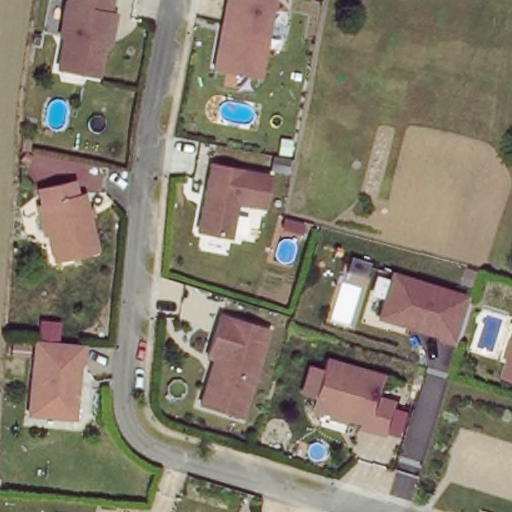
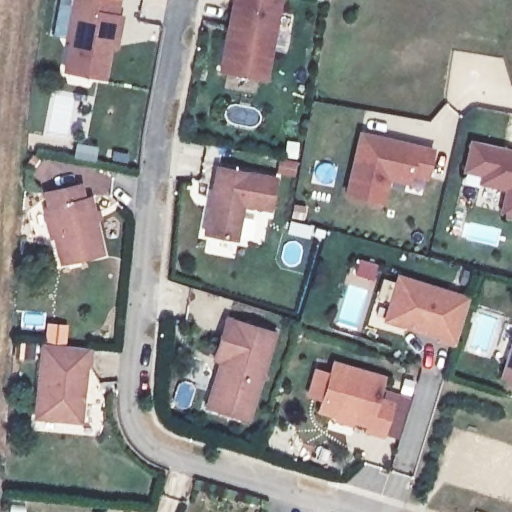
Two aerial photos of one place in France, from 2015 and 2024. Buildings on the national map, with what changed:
unchanged [(75,26),(71,25),(77,0),(121,0),(120,2),(126,4),(120,35),(114,34),(108,65),(69,58),(75,26)]
unchanged [(221,69),(226,46),(233,9),(235,0),(282,0),(266,77),(221,69)]
new [(427,179),(409,175),(409,184),(388,180),(382,204),(344,195),(359,130),(433,147),(427,179)]
new [(498,212),(504,190),(477,184),(479,175),(462,170),(469,140),(512,149),(512,216),(498,212)]
unchanged [(261,209),(246,205),(239,240),(201,235),(212,162),(266,176),(261,209)]
unchanged [(79,184),(83,199),(89,197),(101,254),(61,263),(45,191),(79,184)]
unchanged [(394,275),(465,297),(455,328),(451,343),(435,338),(435,335),(381,319),(394,275)]
unchanged [(210,388),(216,370),(223,366),(226,358),(213,353),(226,313),(274,329),(246,416),(226,410),(205,402),(210,388)]
unchanged [(499,375),(512,334),(512,380),(499,375)]
unchanged [(74,345),(95,348),(93,365),(90,365),(83,421),(38,416),(47,342),(74,345)]
unchanged [(377,395),(394,401),(384,435),(317,415),(331,358),(382,375),(377,395)]

